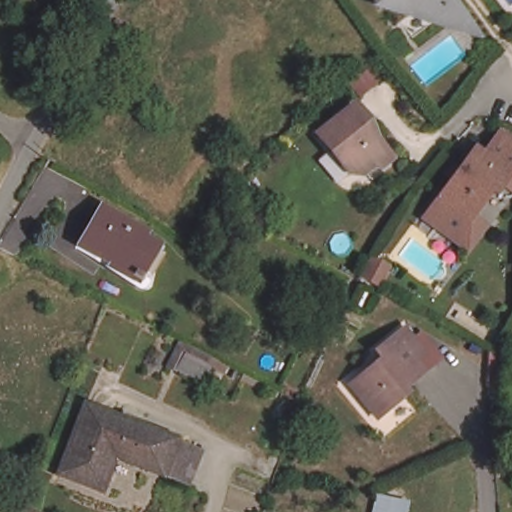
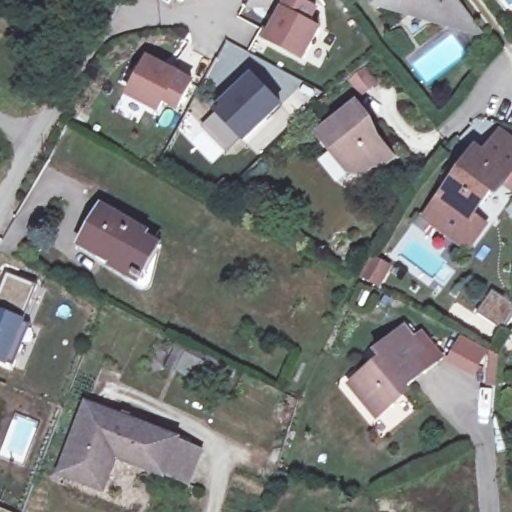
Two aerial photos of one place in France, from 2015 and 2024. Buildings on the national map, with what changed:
unchanged [(39,6),(28,0),(42,0),(39,6)]
new [(283,0),(303,0),(319,9),(311,23),(322,29),(304,62),(262,40),(280,6),(283,0)]
unchanged [(465,32),(456,20),(446,27),(438,17),(431,23),(418,7),(407,16),(395,0),(382,9),(378,0),(453,0),(473,26),(465,32)]
new [(163,104),(158,115),(124,96),(146,55),(180,73),(194,80),(178,112),(163,104)]
new [(251,72),(283,106),(244,144),(211,110),(251,72)]
unchanged [(371,125),(367,128),(393,161),(383,169),(373,168),(363,176),(351,176),(320,136),(358,107),(371,125)]
unchanged [(476,222),(465,213),(451,231),(432,217),(446,199),(483,149),(491,155),(500,143),(508,133),(512,137),(512,182),(511,183),(507,180),(476,222)]
unchanged [(144,229),(141,233),(153,240),(135,274),(77,242),(98,203),(144,229)]
unchanged [(466,254),(427,224),(432,217),(451,231),(465,213),(476,222),(480,217),(488,225),(466,254)]
unchanged [(365,273),(375,256),(381,259),(392,265),(390,270),(383,283),(365,273)]
new [(2,270),(37,283),(25,317),(0,307),(0,277),(2,270)]
new [(25,317),(30,319),(11,366),(0,362),(0,307),(25,317)]
unchanged [(363,348),(382,331),(392,323),(414,349),(405,357),(413,368),(382,395),(386,399),(367,415),(339,383),(370,357),(363,348)]
unchanged [(213,349),(201,377),(170,363),(182,334),(213,349)]
unchanged [(160,477),(112,458),(98,489),(56,472),(80,415),(85,404),(105,413),(175,442),(199,452),(183,487),(160,477)]
unchanged [(365,512),(373,485),(411,495),(407,512),(365,512)]

